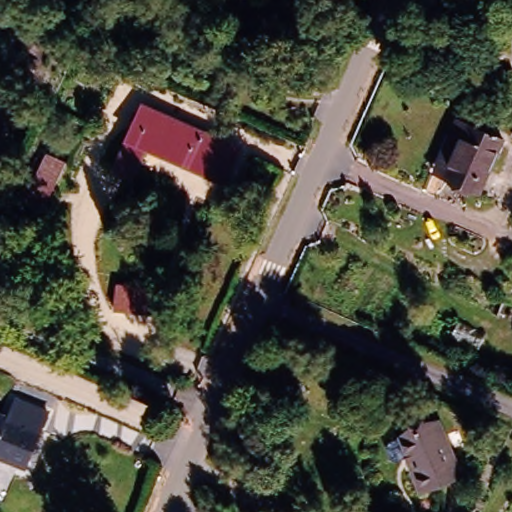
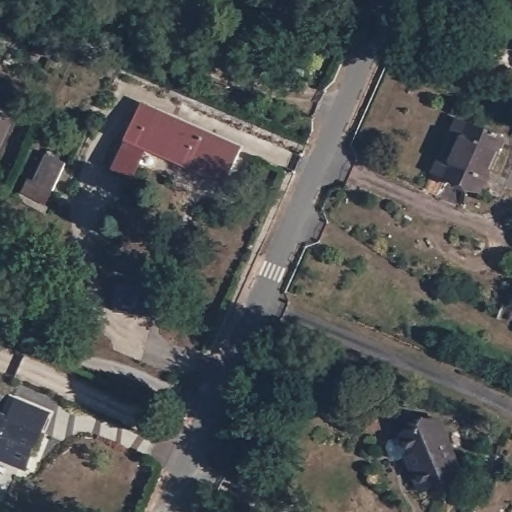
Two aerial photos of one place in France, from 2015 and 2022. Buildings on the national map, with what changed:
unchanged [(229,181),(143,140),(124,178),(104,169),(139,98),(244,148),(229,181)]
unchanged [(0,116),(0,112),(2,113),(0,116)]
unchanged [(455,119),(489,134),(467,187),(432,172),(455,119)]
unchanged [(143,322),(117,311),(130,284),(155,295),(143,322)]
unchanged [(14,460),(0,456),(0,413),(8,415),(14,395),(49,406),(35,453),(31,466),(14,460)]
unchanged [(457,475),(416,493),(397,451),(402,449),(395,428),(431,415),(457,475)]

